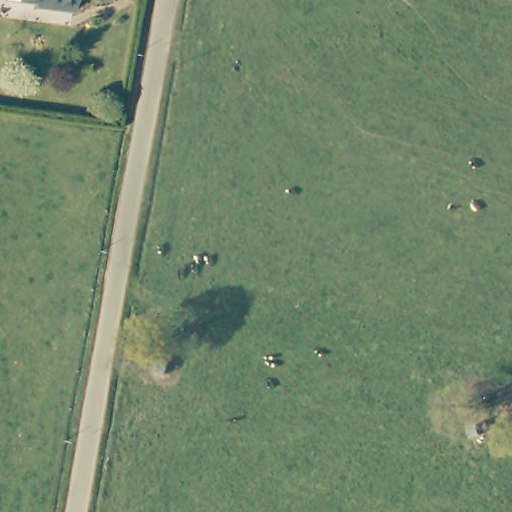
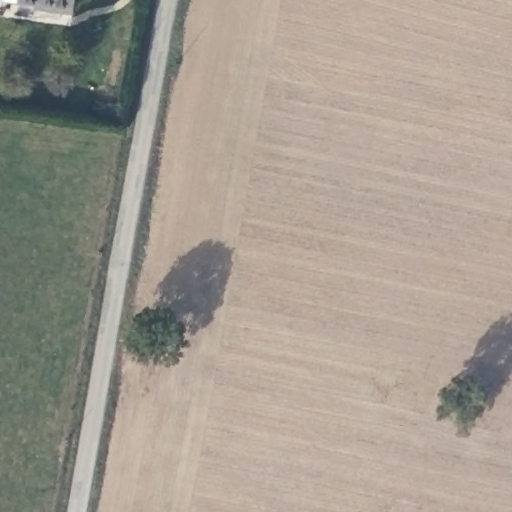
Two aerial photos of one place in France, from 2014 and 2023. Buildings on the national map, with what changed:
unchanged [(13,0),(73,0),(71,11),(13,0)]

